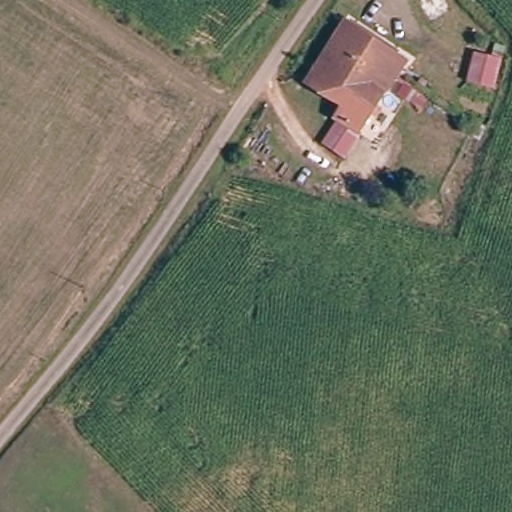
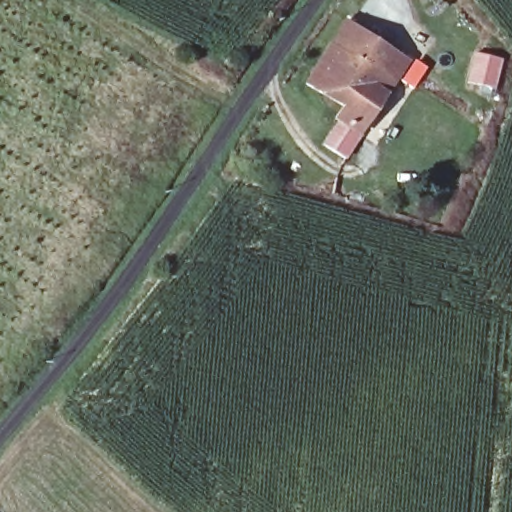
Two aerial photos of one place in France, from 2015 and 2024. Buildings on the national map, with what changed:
unchanged [(383,90),(355,132),(356,136),(340,156),(319,143),(333,123),(326,118),(335,106),(299,85),(341,15),(405,58),(383,90)]
unchanged [(472,48),(509,54),(502,86),(466,81),(472,48)]

